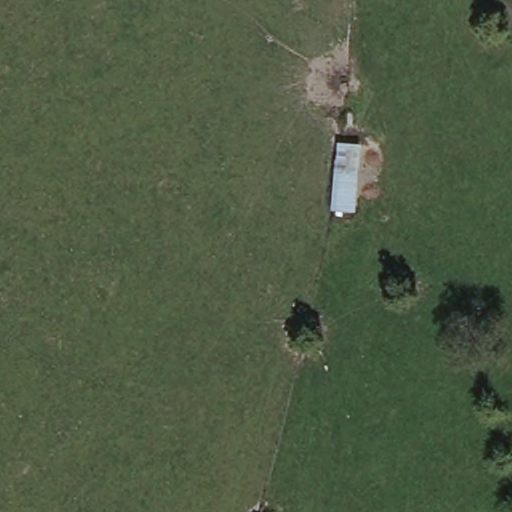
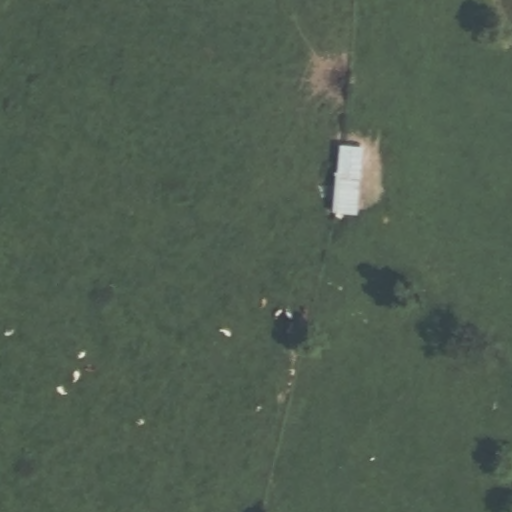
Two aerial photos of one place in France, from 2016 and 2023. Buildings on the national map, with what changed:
unchanged [(363,143),(357,213),(331,211),(337,141),(363,143)]

